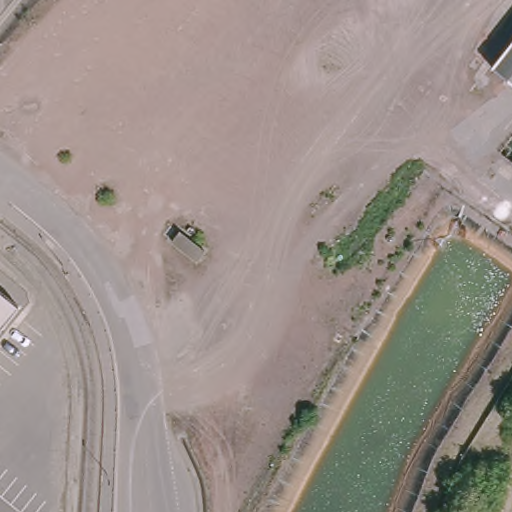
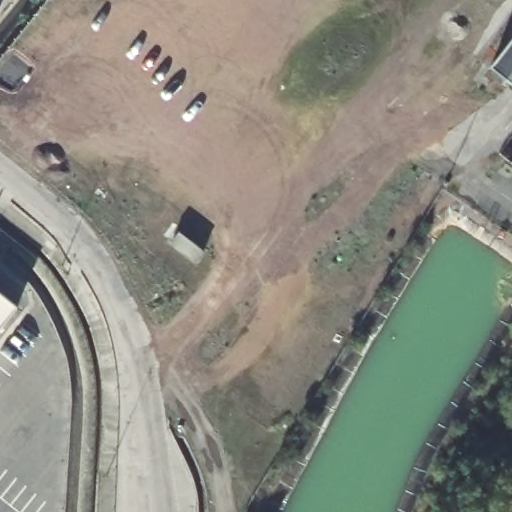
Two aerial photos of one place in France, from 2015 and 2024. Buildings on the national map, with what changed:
unchanged [(511,91),(503,85),(481,67),(512,27),(512,89),(511,91)]
unchanged [(205,251),(197,261),(172,242),(180,232),(205,251)]
unchanged [(23,311),(0,339),(0,293),(23,311)]

